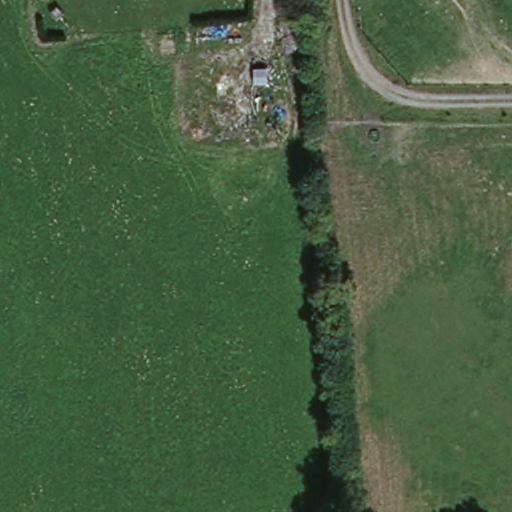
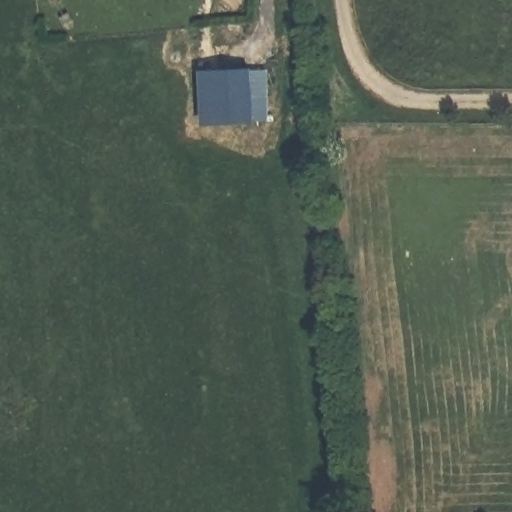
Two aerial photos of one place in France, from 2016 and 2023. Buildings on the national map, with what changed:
new [(254,64),(255,93),(270,92),(270,119),(200,121),(198,65),(254,64)]

